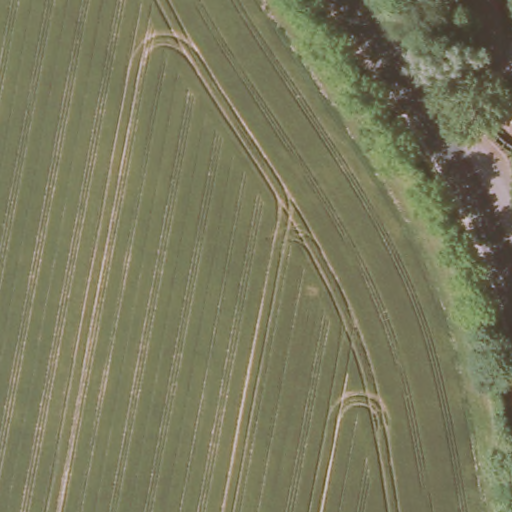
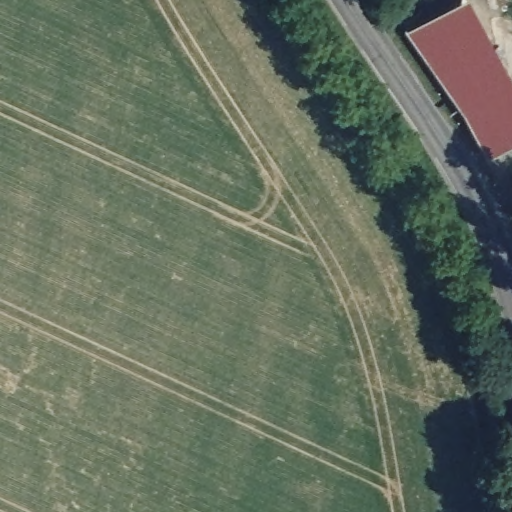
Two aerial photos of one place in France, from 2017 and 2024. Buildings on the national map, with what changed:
new [(512,69),(512,144),(490,156),(466,111),(407,27),(460,0),(475,0),(512,69)]

